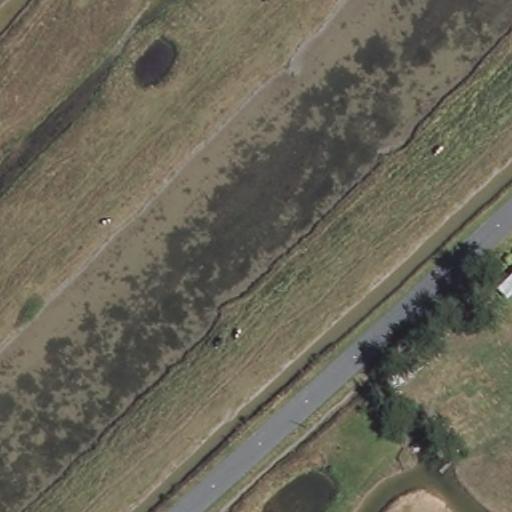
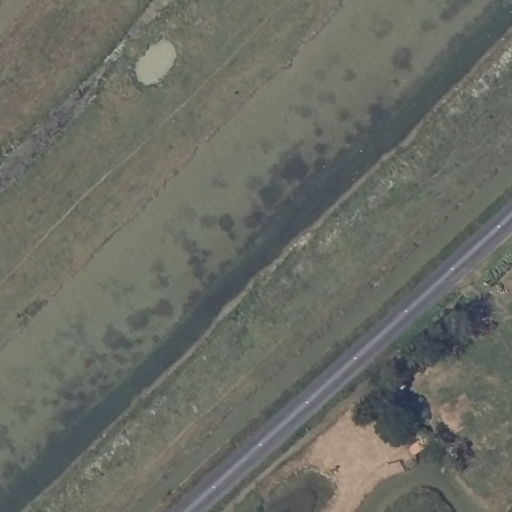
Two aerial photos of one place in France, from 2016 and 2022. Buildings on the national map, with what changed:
[]

